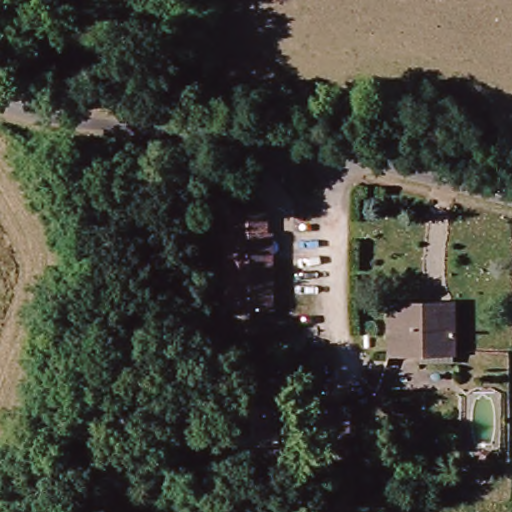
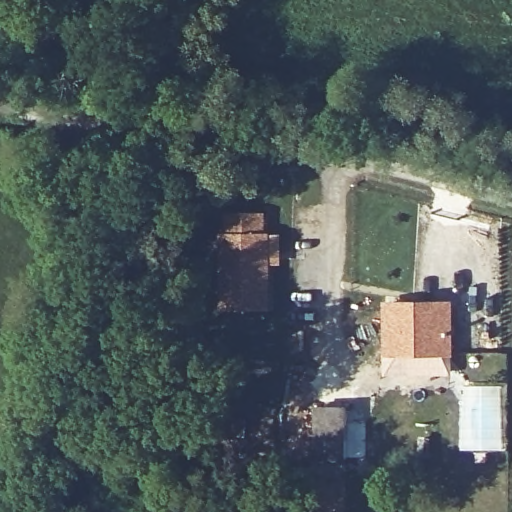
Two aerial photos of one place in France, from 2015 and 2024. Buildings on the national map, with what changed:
unchanged [(258,263),(265,263),(265,310),(220,310),(219,233),(223,232),(224,212),(259,212),(258,263)]
unchanged [(386,355),(386,310),(447,310),(447,355),(386,355)]
unchanged [(340,452),(315,452),(315,406),(340,406),(340,452)]

